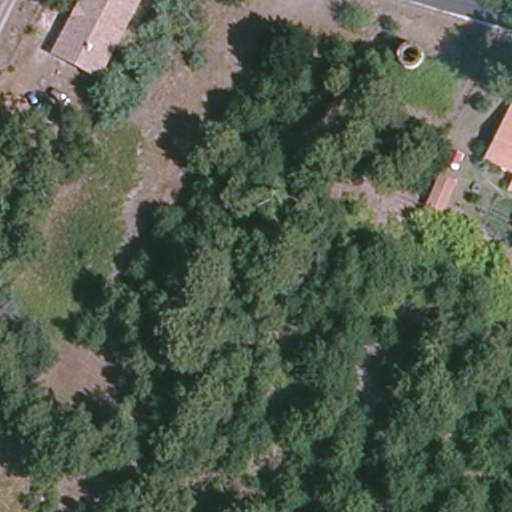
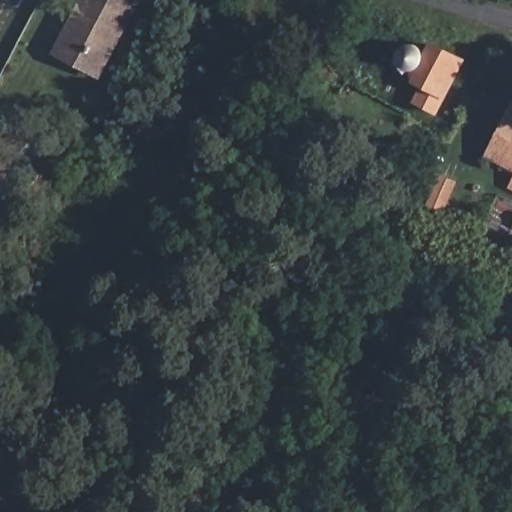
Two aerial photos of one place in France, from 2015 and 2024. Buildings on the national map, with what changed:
unchanged [(110,60),(100,78),(57,57),(85,0),(93,0),(73,43),(110,60)]
unchanged [(73,43),(93,0),(142,0),(110,60),(73,43)]
unchanged [(498,73),(470,59),(477,47),(482,39),(510,52),(507,56),(498,73)]
new [(437,48),(466,65),(449,101),(438,116),(417,104),(421,90),(412,82),(416,76),(407,74),(402,69),(402,62),(404,55),(410,51),(417,50),(422,52),(425,54),(427,57),(427,63),(426,69),(437,48)]
demolished [(411,89),(413,80),(425,74),(436,73),(447,81),(448,87),(448,99),(439,107),(428,110),(420,107),(412,100),(411,89)]
unchanged [(488,144),(507,109),(512,111),(512,167),(485,150),(488,144)]
unchanged [(443,217),(426,211),(442,171),(460,177),(443,217)]
unchanged [(512,178),(512,184),(509,182),(512,178)]

